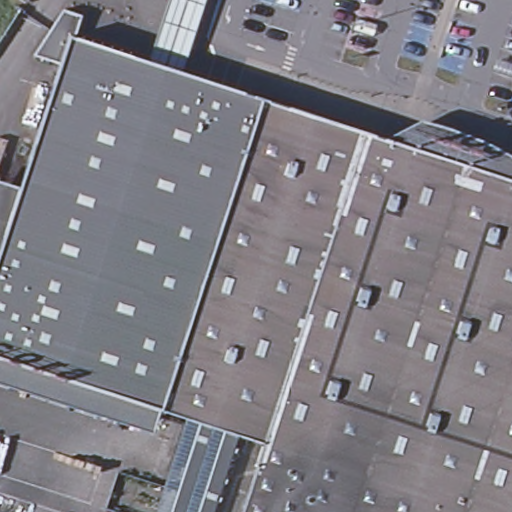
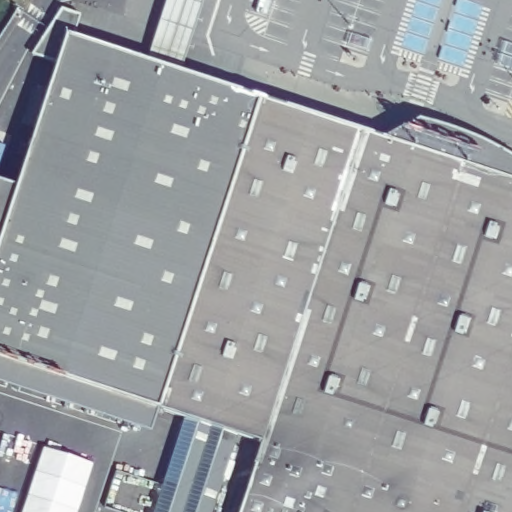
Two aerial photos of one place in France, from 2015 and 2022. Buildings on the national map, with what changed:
unchanged [(18,185),(59,65),(35,55),(51,29),(63,10),(83,16),(77,36),(262,99),(160,410),(152,431),(0,381),(0,180),(18,185)]
unchanged [(240,437),(185,419),(160,410),(262,99),(365,133),(264,445),(240,437)]
unchanged [(512,181),(512,512),(241,512),(264,445),(365,133),(490,174),(512,181)]
unchanged [(512,149),(512,181),(490,174),(500,145),(512,149)]
unchanged [(215,512),(150,512),(185,419),(240,437),(215,512)]
new [(34,512),(54,451),(102,467),(88,512),(34,512)]

